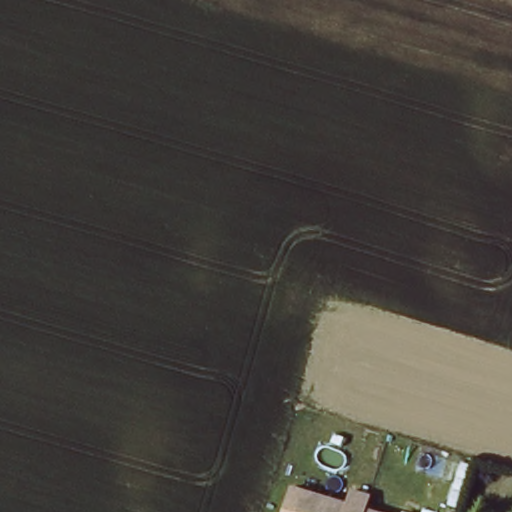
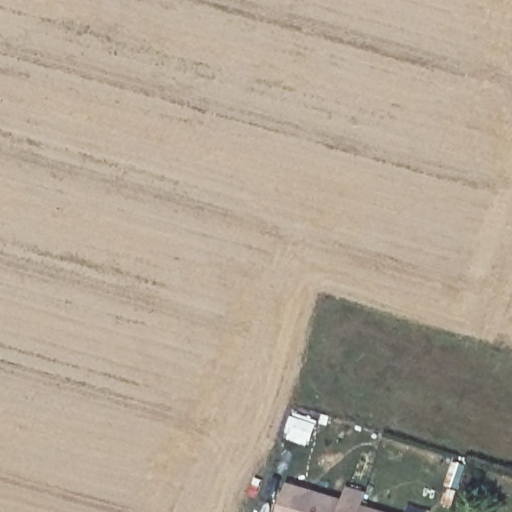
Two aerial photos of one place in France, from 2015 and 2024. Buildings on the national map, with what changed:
unchanged [(351,484),(368,488),(364,501),(400,512),(282,512),(291,480),(348,497),(351,484)]

